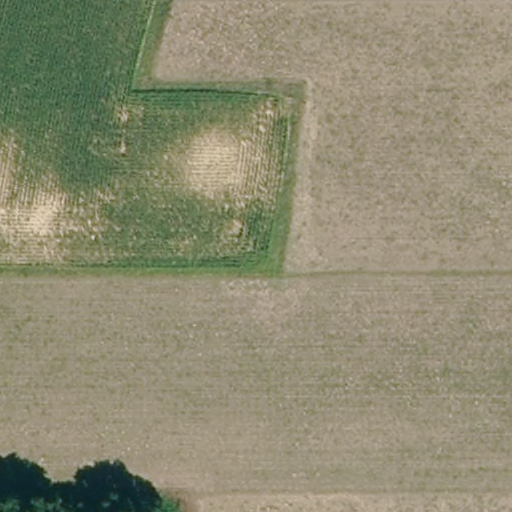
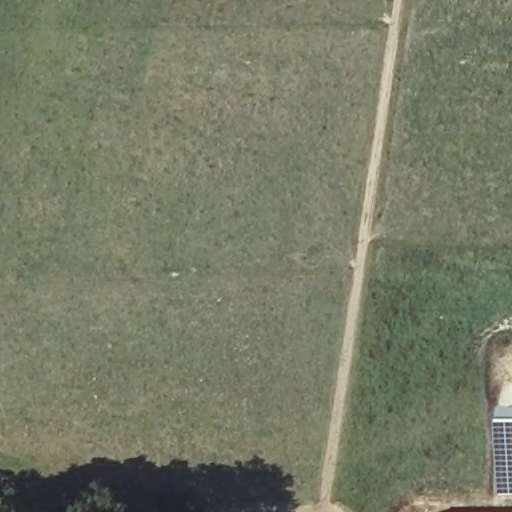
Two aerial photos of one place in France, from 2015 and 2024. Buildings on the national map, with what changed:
new [(512,497),(497,497),(496,405),(512,404),(512,497)]

